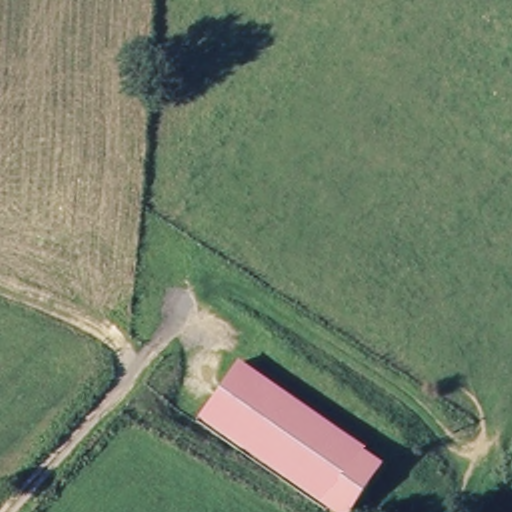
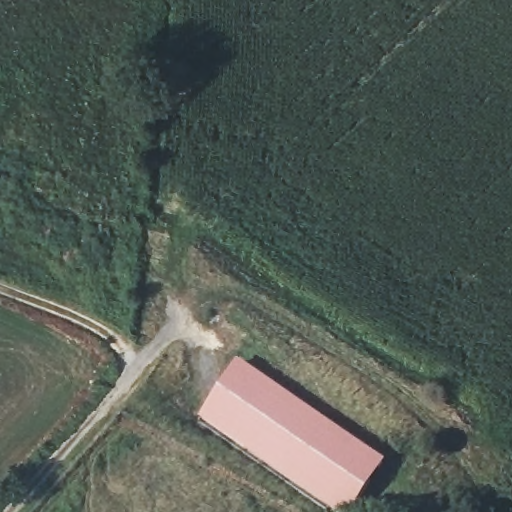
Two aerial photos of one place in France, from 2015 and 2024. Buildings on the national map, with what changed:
unchanged [(351,512),(329,512),(200,417),(240,362),(387,465),(351,512)]

